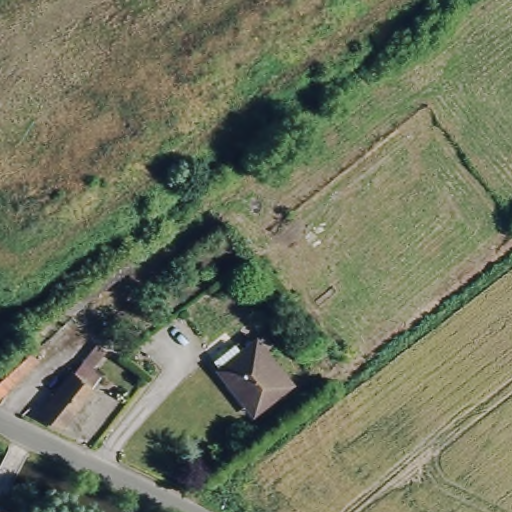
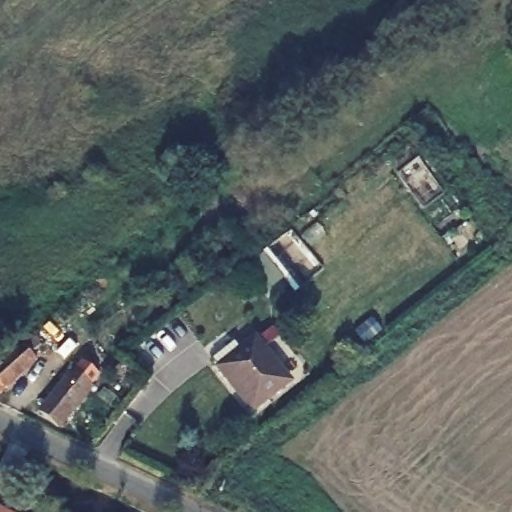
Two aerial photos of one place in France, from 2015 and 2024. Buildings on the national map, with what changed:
unchanged [(32,337),(39,344),(33,351),(39,360),(0,397),(0,362),(3,364),(32,337)]
unchanged [(34,402),(99,341),(105,347),(89,361),(92,366),(85,372),(90,377),(49,417),(34,402)]
unchanged [(232,345),(237,353),(253,342),(260,351),(265,346),(270,353),(267,360),(288,390),(253,417),(234,391),(211,360),(232,345)]
unchanged [(0,510),(4,512),(0,512),(0,510)]

